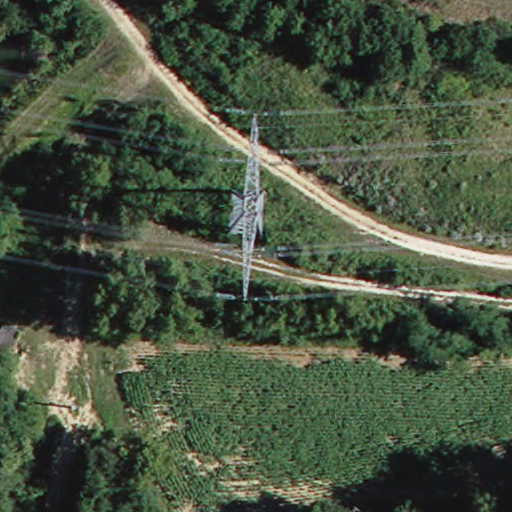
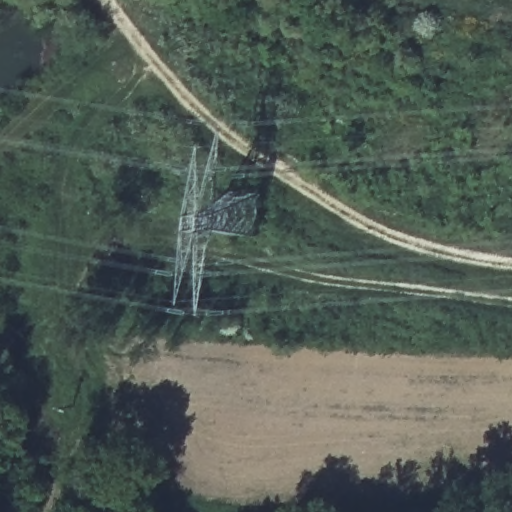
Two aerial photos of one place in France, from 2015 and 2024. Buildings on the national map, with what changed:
unchanged [(0,332),(7,321),(21,331),(0,361),(0,332)]

